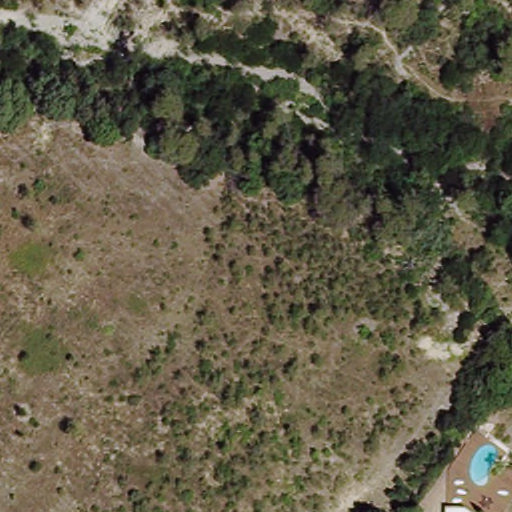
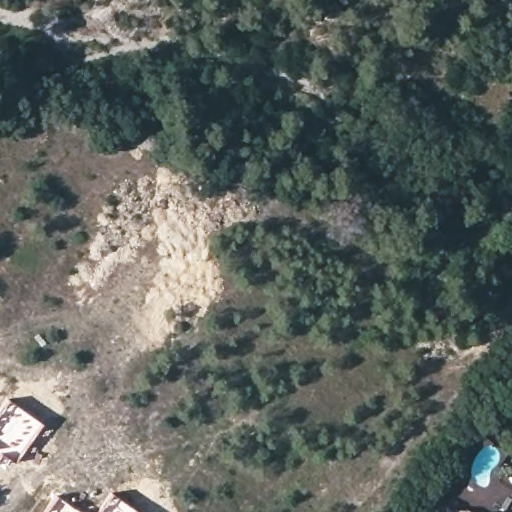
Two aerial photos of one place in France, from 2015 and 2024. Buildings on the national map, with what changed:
new [(6,399),(41,422),(12,460),(1,453),(0,453),(0,407),(6,399)]
new [(111,493),(136,512),(96,512),(111,493)]
new [(79,512),(43,512),(55,495),(79,512)]

